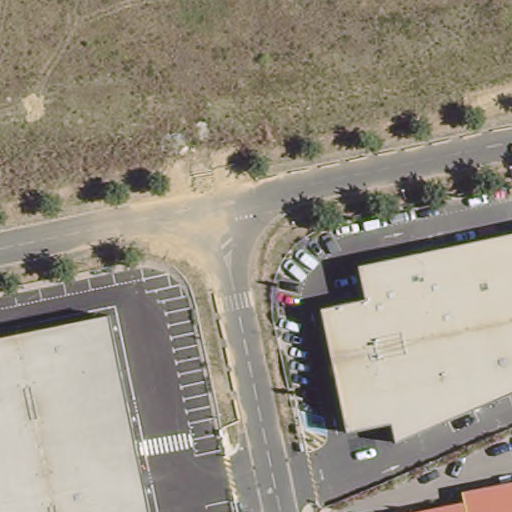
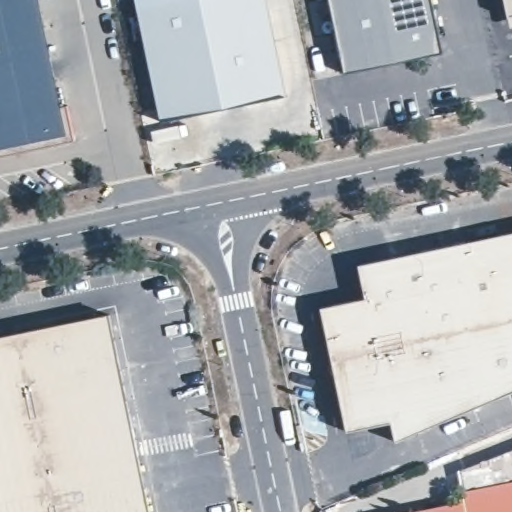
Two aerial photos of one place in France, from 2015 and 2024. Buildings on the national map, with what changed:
new [(62,106),(69,105),(75,141),(0,156),(0,0),(40,0),(62,106)]
new [(139,10),(137,0),(187,0),(139,10)]
new [(187,0),(266,0),(287,94),(161,120),(139,10),(187,0)]
new [(429,55),(345,72),(329,0),(432,0),(440,37),(443,52),(429,55)]
new [(512,14),(510,15),(506,0),(512,0),(512,14)]
unchanged [(392,420),(347,429),(320,305),(365,296),(358,262),(512,229),(512,391),(396,439),(392,420)]
unchanged [(0,512),(0,338),(111,315),(151,512),(0,512)]
new [(512,472),(461,482),(459,471),(512,450),(512,472)]
unchanged [(459,483),(512,472),(512,512),(366,512),(460,493),(459,483)]

